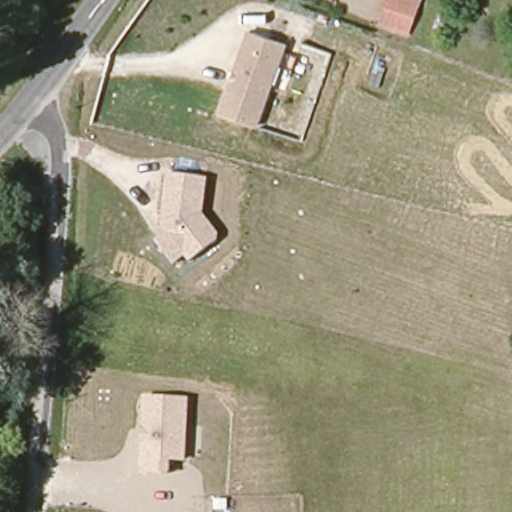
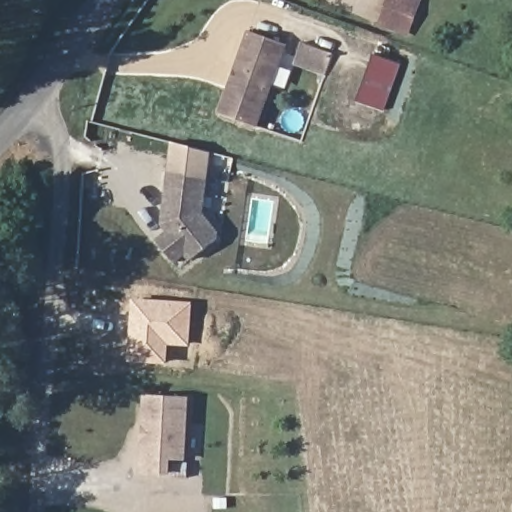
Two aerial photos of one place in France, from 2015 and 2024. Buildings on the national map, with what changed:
unchanged [(386,0),(419,0),(410,32),(377,26),(386,0)]
unchanged [(259,127),(218,113),(248,31),(288,46),(259,127)]
new [(383,109),(356,100),(371,52),(399,62),(383,109)]
new [(170,141),(211,152),(208,180),(167,173),(170,141)]
unchanged [(219,231),(217,242),(192,262),(185,255),(174,267),(155,241),(165,231),(161,225),(167,173),(208,180),(206,212),(219,231)]
new [(189,346),(168,345),(166,365),(128,362),(132,298),(192,302),(189,346)]
unchanged [(171,461),(171,475),(141,473),(143,397),(188,397),(186,461),(171,461)]

